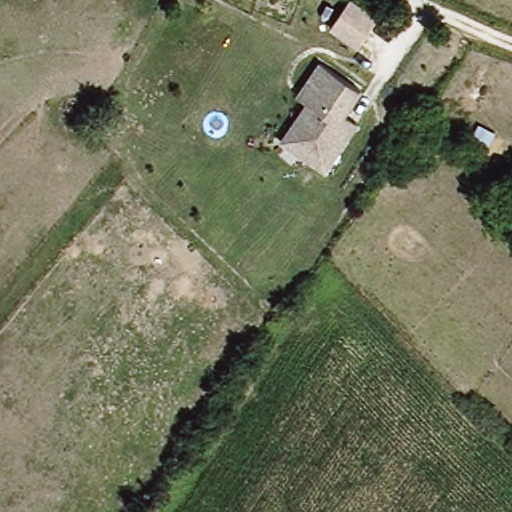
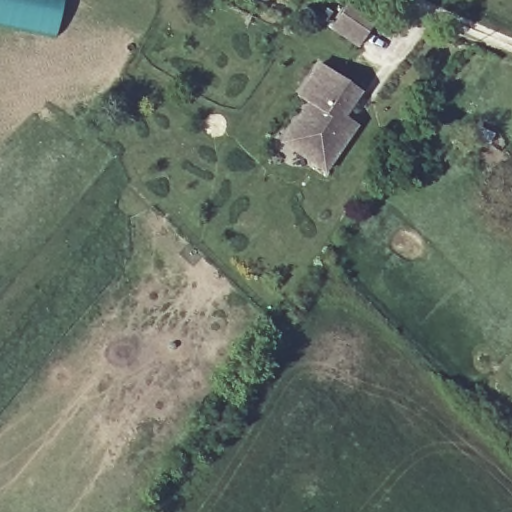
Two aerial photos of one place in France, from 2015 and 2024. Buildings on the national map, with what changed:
new [(0,25),(0,0),(63,0),(57,35),(0,25)]
unchanged [(356,0),(370,10),(351,38),(324,19),(337,0),(356,0)]
unchanged [(283,129),(302,103),(290,95),(295,89),(312,61),(354,89),(337,116),(350,124),(318,172),(304,163),(274,141),(283,129)]

